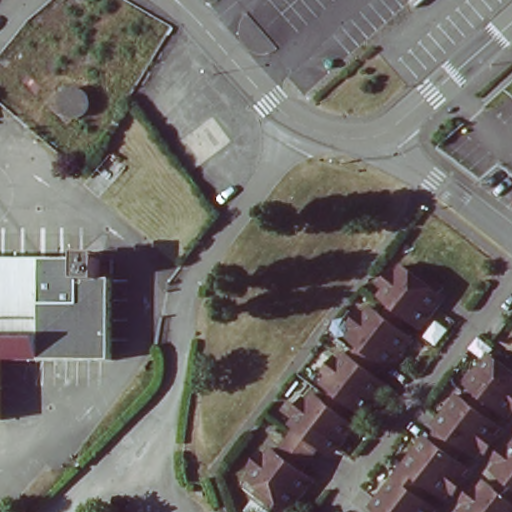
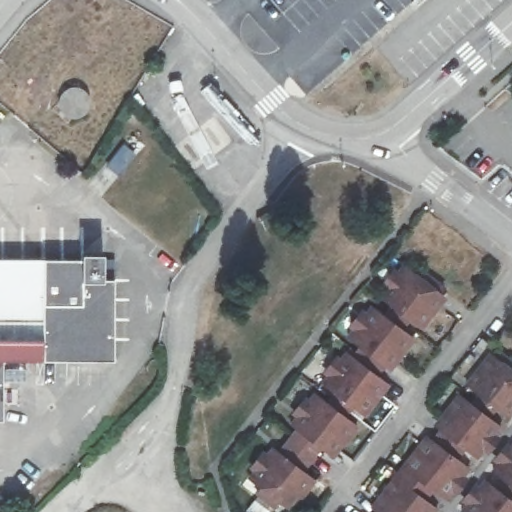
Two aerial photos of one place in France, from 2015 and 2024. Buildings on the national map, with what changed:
unchanged [(83,95),(83,101),(82,106),(80,111),(76,113),(70,113),(64,111),(60,108),(58,103),(58,98),(60,96),(60,95),(62,91),(65,89),(70,87),(73,87),(77,87),(80,91),(83,95)]
unchanged [(118,259),(119,364),(45,365),(47,260),(118,259)]
unchanged [(47,260),(45,365),(5,365),(3,423),(0,423),(0,260),(47,260)]
unchanged [(395,327),(382,316),(387,311),(378,301),(385,295),(385,283),(393,280),(401,269),(411,278),(414,273),(440,292),(430,305),(437,311),(417,335),(406,326),(400,332),(395,327)]
unchanged [(351,357),(355,353),(345,345),(351,334),(348,332),(350,325),(360,325),(366,317),(375,324),(382,316),(395,327),(400,332),(395,338),(407,347),(390,370),(385,366),(376,376),(351,357)]
unchanged [(488,390),(477,380),(498,354),(503,356),(510,346),(512,348),(512,409),(504,403),(499,409),(482,396),(488,390)]
unchanged [(376,376),(359,398),(370,406),(360,419),(350,410),(340,422),(351,431),(340,447),(329,438),(309,461),(286,442),(292,435),(286,431),(293,421),(293,416),(299,409),(304,409),(310,400),(322,410),(333,397),(321,387),(329,377),(323,372),(330,364),(334,367),(341,360),(346,363),(351,357),(376,376)]
unchanged [(499,409),(495,414),(509,426),(502,435),(505,440),(499,448),(496,445),(486,456),(473,445),(469,449),(454,438),(446,432),(465,411),(458,405),(469,393),(478,400),(482,396),(499,409)]
unchanged [(408,471),(433,439),(438,443),(446,432),(454,438),(469,449),(463,456),(477,466),(468,476),(470,486),(464,493),(460,490),(453,497),(440,486),(435,492),(408,471)]
unchanged [(295,477),(308,488),(290,512),(283,512),(276,507),(272,512),(271,512),(253,499),(258,493),(245,484),(253,473),(249,470),(258,463),(267,453),(279,464),(285,458),(278,452),(286,442),(309,461),(295,477)]
unchanged [(511,455),(509,452),(512,448),(512,472),(504,465),(511,455)]
unchanged [(384,502),(408,471),(435,492),(430,498),(444,508),(441,512),(385,512),(390,506),(384,502)]
unchanged [(512,477),(512,482),(509,480),(512,477)]
unchanged [(512,512),(475,512),(471,509),(477,501),(476,495),(482,488),(486,489),(496,479),(505,485),(509,480),(512,482),(512,512)]

